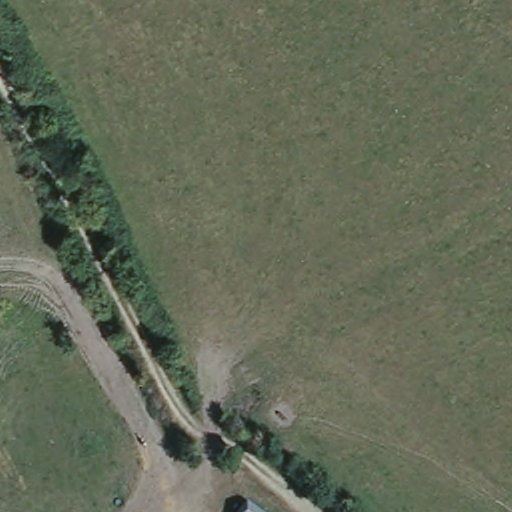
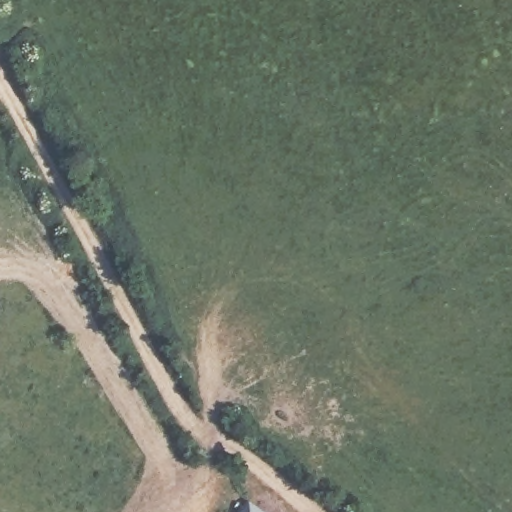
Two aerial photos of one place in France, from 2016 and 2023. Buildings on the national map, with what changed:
unchanged [(244,505),(256,512),(240,512),(244,505)]

